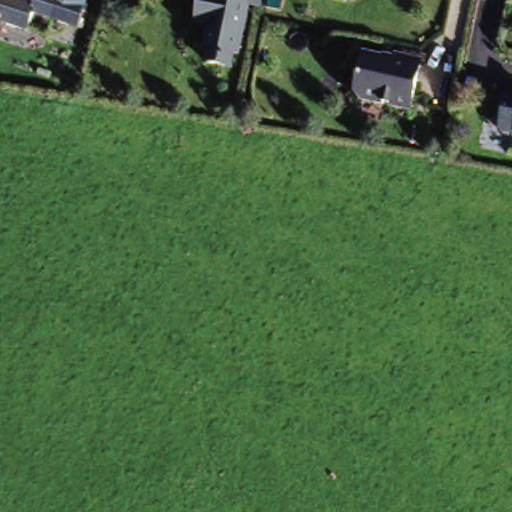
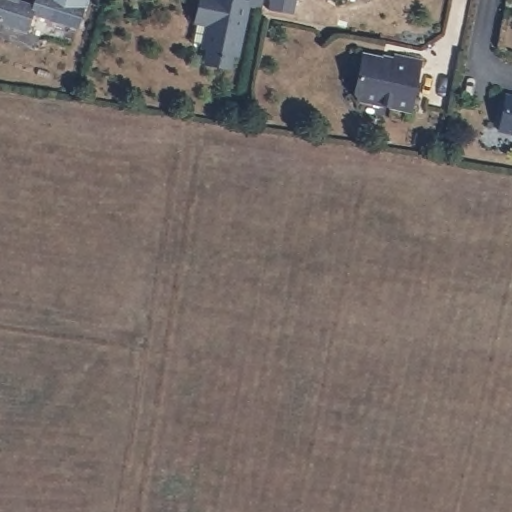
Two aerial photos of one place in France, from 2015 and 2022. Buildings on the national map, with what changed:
unchanged [(25,2),(41,6),(42,0),(92,0),(86,24),(40,12),(36,31),(0,23),(0,0),(25,0),(25,2)]
unchanged [(250,10),(240,60),(235,59),(232,74),(209,69),(212,55),(207,53),(212,30),(200,27),(205,1),(250,10)]
unchanged [(400,65),(400,60),(427,66),(415,115),(365,103),(361,96),(370,58),(400,65)]
unchanged [(505,132),(512,99),(512,134),(505,132)]

